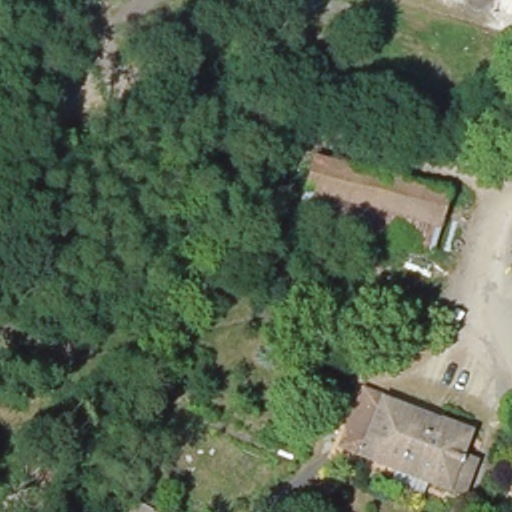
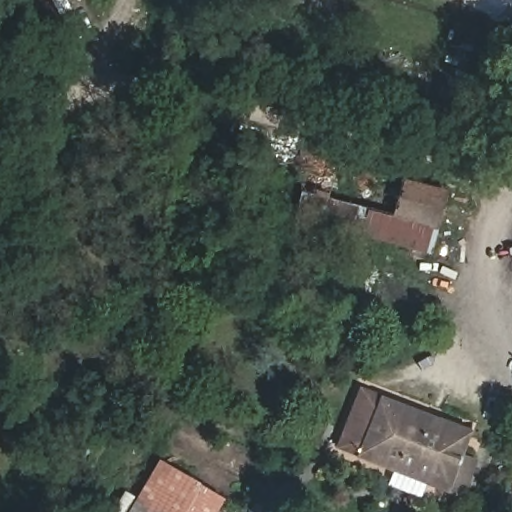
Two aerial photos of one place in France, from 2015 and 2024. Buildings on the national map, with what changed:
unchanged [(310,163),(337,170),(390,183),(400,185),(443,196),(430,251),(298,214),(310,163)]
unchanged [(390,492),(395,478),(340,456),(362,396),(470,435),(461,461),(477,467),(462,504),(427,490),(422,504),(390,492)]
new [(198,483),(198,485),(223,499),(216,512),(160,512),(136,497),(158,460),(198,483)]
unchanged [(160,512),(126,512),(136,497),(160,512)]

